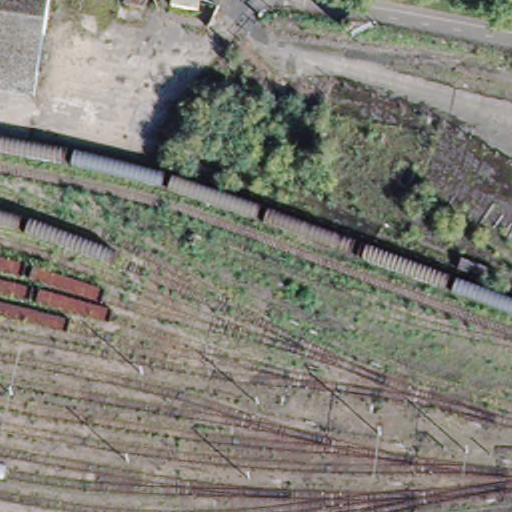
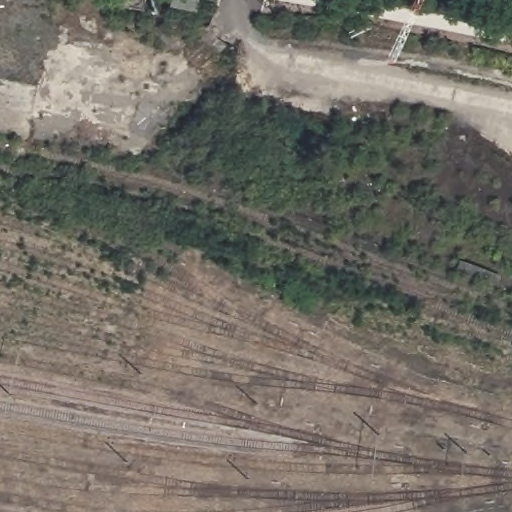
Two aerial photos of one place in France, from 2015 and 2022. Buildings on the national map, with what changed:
demolished [(0,72),(0,0),(48,0),(35,77),(0,72)]
demolished [(128,6),(129,0),(147,0),(145,8),(128,6)]
unchanged [(459,263),(500,279),(497,289),(455,274),(459,263)]

